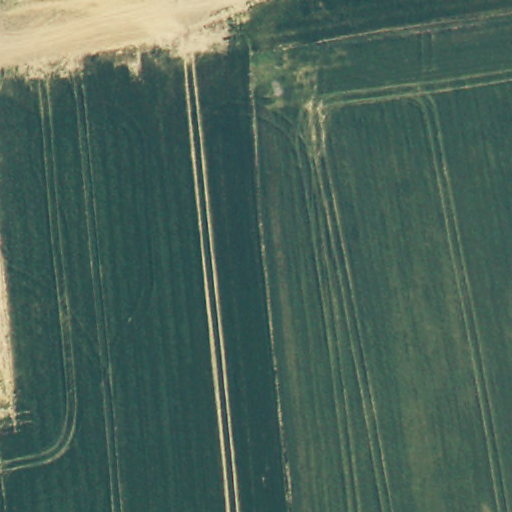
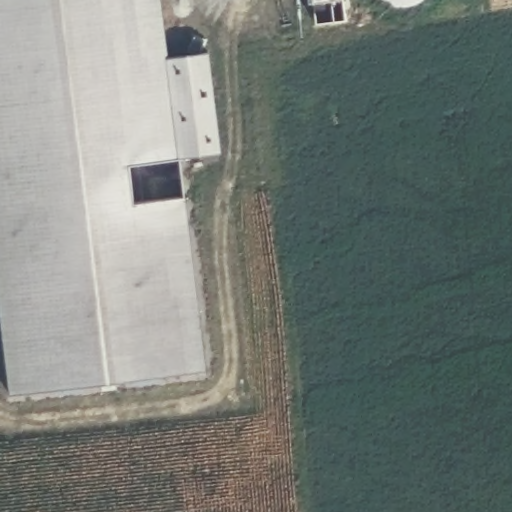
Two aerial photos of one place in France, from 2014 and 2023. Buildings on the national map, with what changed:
new [(209,53),(221,154),(179,159),(208,371),(7,396),(0,338),(0,0),(160,0),(168,57),(209,53)]

